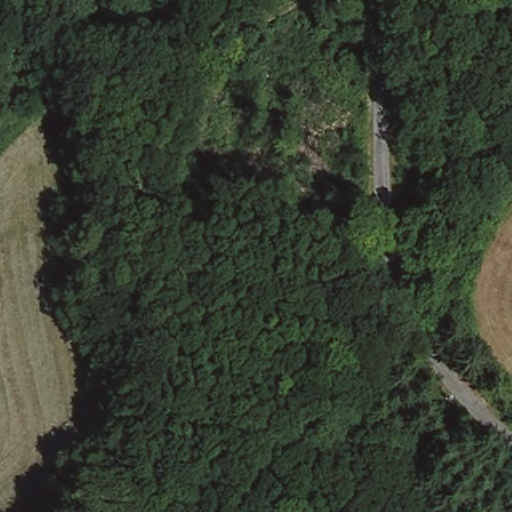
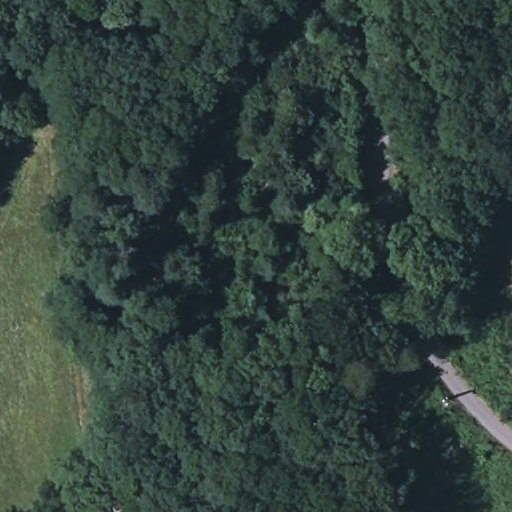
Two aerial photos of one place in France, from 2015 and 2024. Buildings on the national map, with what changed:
[]

